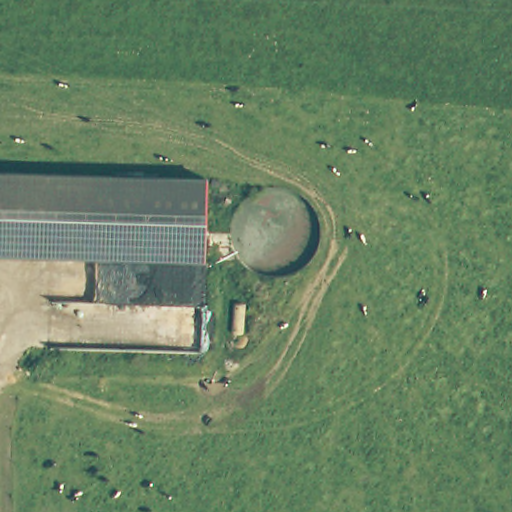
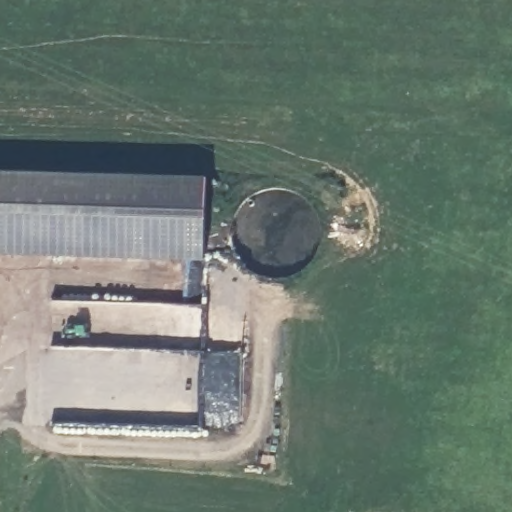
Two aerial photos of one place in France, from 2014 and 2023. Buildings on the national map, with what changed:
unchanged [(203,275),(0,265),(0,176),(207,190),(203,275)]

